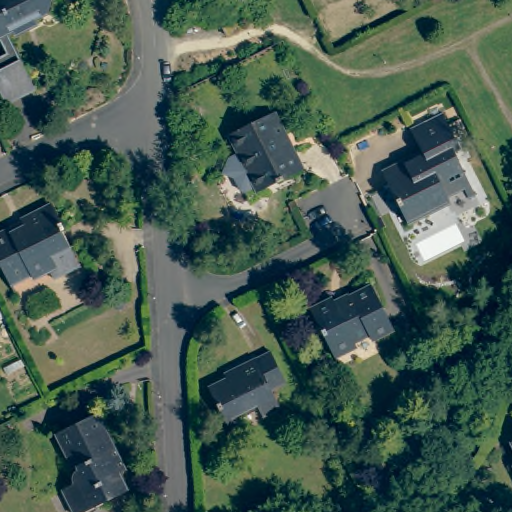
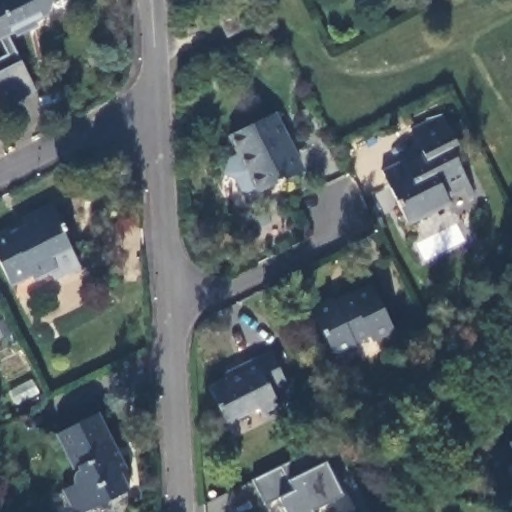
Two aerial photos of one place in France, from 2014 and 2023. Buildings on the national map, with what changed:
unchanged [(2,106),(0,101),(0,58),(2,57),(0,53),(0,0),(53,0),(47,4),(44,16),(29,23),(31,27),(12,37),(9,32),(2,36),(30,91),(4,105),(2,106)]
unchanged [(217,22),(234,15),(242,31),(226,39),(217,22)]
unchanged [(303,141),(295,145),(298,151),(302,149),(312,169),(271,189),(269,184),(260,189),(254,187),(248,175),(236,171),(242,156),(252,150),(243,132),(286,110),(303,141)]
unchanged [(381,172),(403,162),(404,165),(422,157),(409,130),(440,115),(459,152),(453,156),(469,187),(446,200),(448,204),(406,226),(381,172)]
unchanged [(0,266),(0,236),(11,231),(13,234),(26,228),(22,221),(52,207),(64,231),(62,232),(70,250),(52,258),(56,267),(49,271),(32,279),(31,277),(10,287),(0,266)]
unchanged [(330,295),(332,299),(369,282),(391,327),(371,337),(368,330),(352,338),(354,343),(335,352),(340,362),(338,363),(309,306),(330,295)]
unchanged [(208,394),(225,385),(224,381),(269,358),(285,389),(269,397),(279,415),(261,423),(255,411),(223,427),(208,394)]
unchanged [(131,462),(125,465),(133,481),(81,507),(67,481),(80,474),(81,467),(84,464),(81,460),(77,461),(60,427),(102,406),(131,462)]
new [(345,497),(315,512),(282,512),(281,510),(285,508),(281,500),(267,507),(254,482),(321,448),(345,497)]

